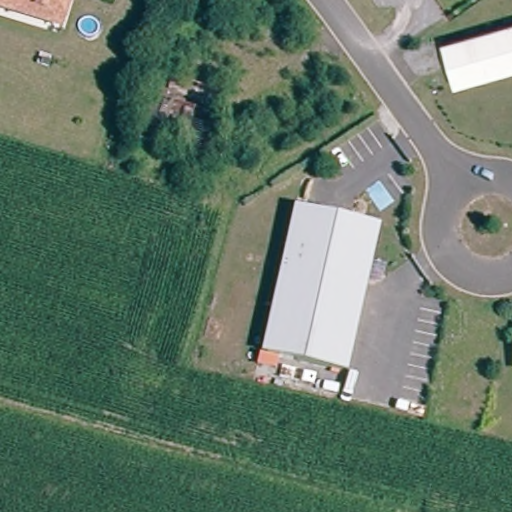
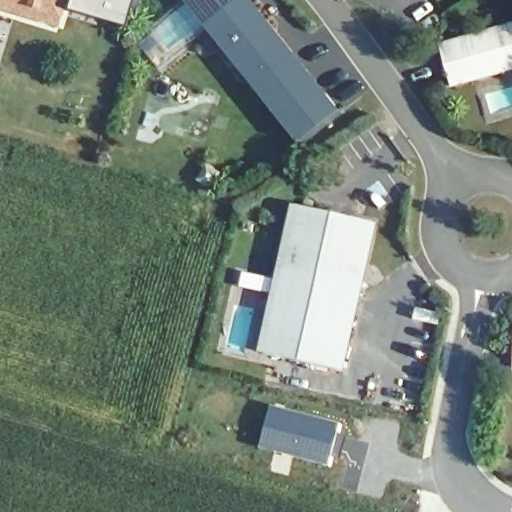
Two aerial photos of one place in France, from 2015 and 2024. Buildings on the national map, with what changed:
unchanged [(60,25),(0,7),(0,0),(67,0),(60,25)]
new [(81,0),(144,0),(136,30),(78,10),(81,0)]
new [(347,114),(305,148),(188,0),(256,0),(347,114)]
unchanged [(456,83),(445,44),(512,26),(512,68),(456,83)]
unchanged [(375,224),(341,372),(267,354),(301,206),(375,224)]
new [(269,404),(341,423),(329,467),(257,448),(269,404)]

